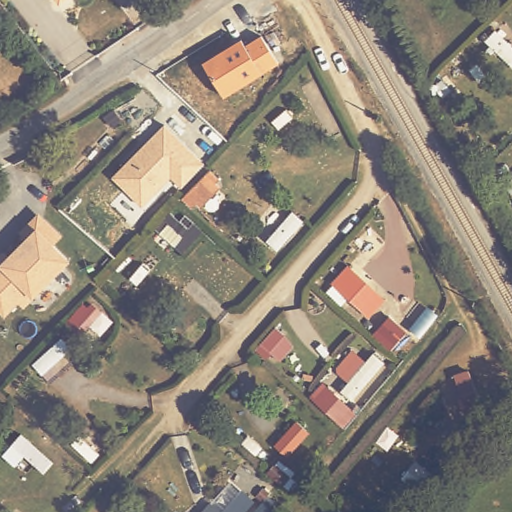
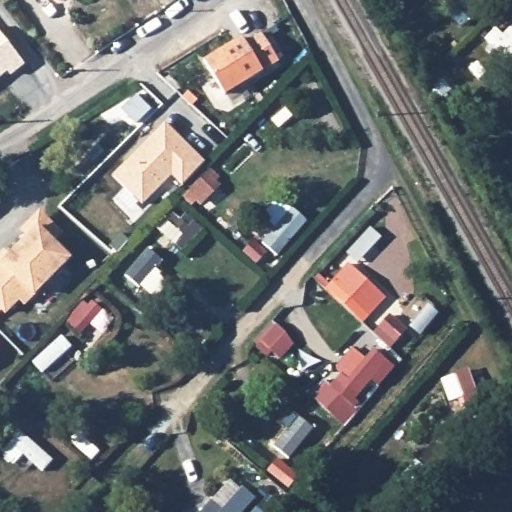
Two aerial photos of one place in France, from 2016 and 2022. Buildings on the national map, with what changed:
unchanged [(52,0),(61,0),(55,4),(52,0)]
new [(25,66),(12,76),(9,73),(0,80),(0,33),(25,66)]
unchanged [(204,62),(243,40),(246,44),(259,35),(278,64),(262,73),(224,96),(204,62)]
unchanged [(204,164),(182,187),(170,178),(141,206),(113,178),(164,126),(204,164)]
unchanged [(185,196),(208,173),(226,188),(201,210),(185,196)]
unchanged [(512,180),(512,203),(503,184),(512,180)]
unchanged [(263,240),(293,208),(308,221),(278,252),(263,240)]
unchanged [(38,209),(65,234),(56,244),(73,262),(28,309),(20,303),(7,316),(0,309),(0,251),(38,209)]

